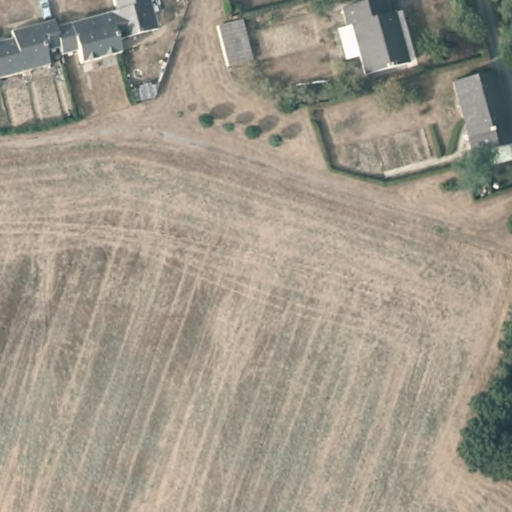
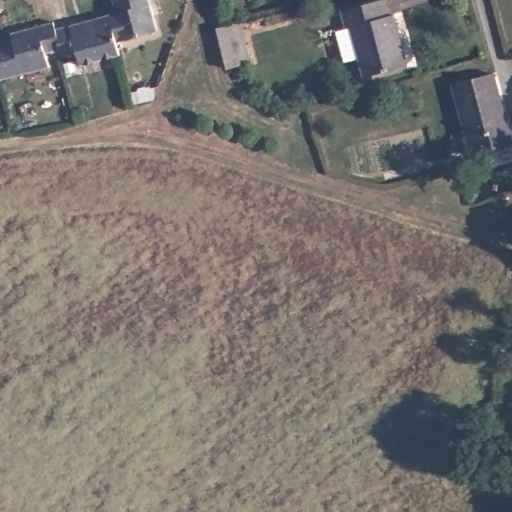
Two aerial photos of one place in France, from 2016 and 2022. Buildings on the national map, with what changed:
unchanged [(8,25),(52,13),(54,20),(113,4),(113,0),(152,0),(159,34),(115,43),(118,56),(84,64),(81,50),(63,54),(61,48),(43,51),(47,68),(0,78),(0,34),(10,31),(8,25)]
unchanged [(390,0),(393,13),(398,12),(412,63),(371,74),(366,60),(351,65),(342,34),(353,30),(348,10),(390,0)]
unchanged [(255,64),(227,70),(215,29),(227,25),(243,21),(255,64)]
unchanged [(503,120),(507,119),(512,136),(512,140),(468,151),(448,76),(489,66),(503,120)]

